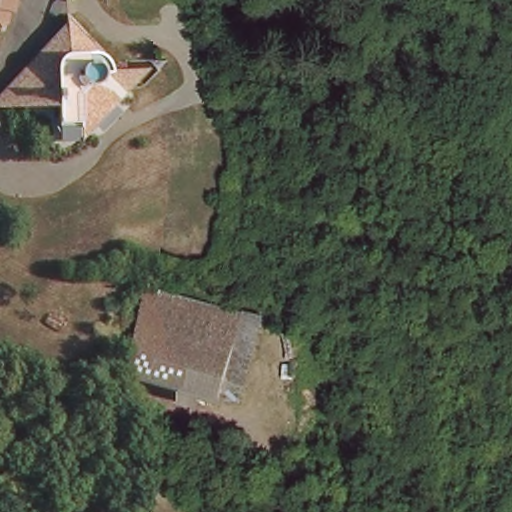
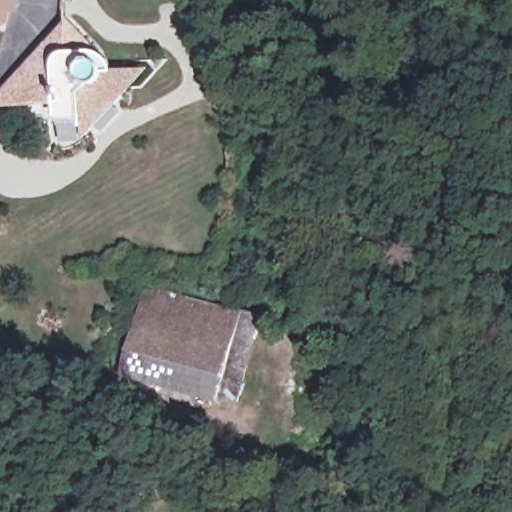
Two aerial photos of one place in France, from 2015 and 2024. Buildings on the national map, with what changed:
unchanged [(0,26),(0,0),(15,0),(14,5),(0,26)]
unchanged [(45,50),(64,32),(66,30),(88,54),(97,55),(105,60),(111,69),(110,79),(121,79),(121,91),(85,129),(55,129),(53,104),(13,105),(0,106),(0,92),(10,82),(45,50)]
unchanged [(140,293),(250,322),(222,406),(124,385),(140,293)]

